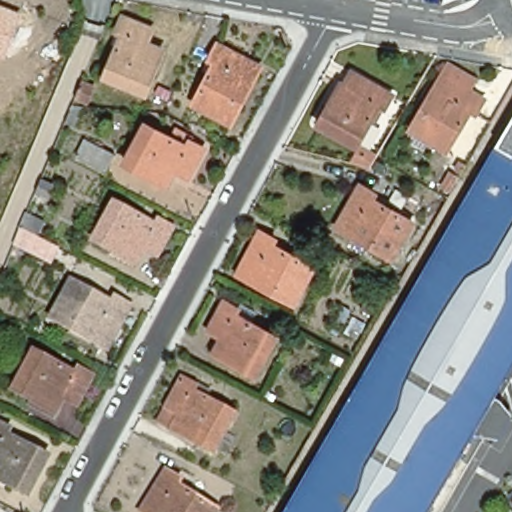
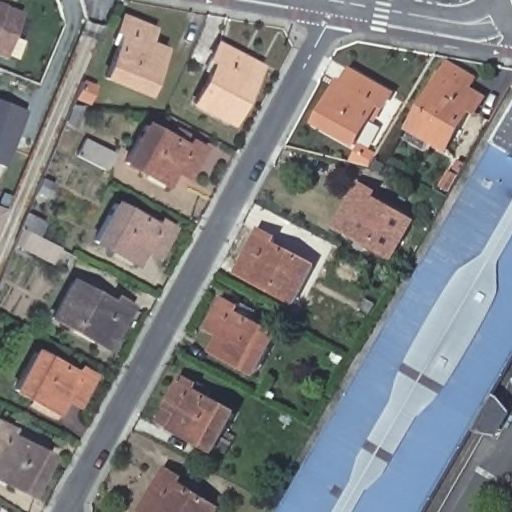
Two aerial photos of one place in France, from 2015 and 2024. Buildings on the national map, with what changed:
unchanged [(6,58),(0,55),(0,4),(22,13),(6,58)]
unchanged [(103,73),(119,37),(113,34),(124,13),(150,24),(145,39),(155,44),(161,46),(156,58),(143,90),(103,73)]
unchanged [(218,46),(258,67),(229,123),(193,103),(207,77),(215,63),(209,60),(218,46)]
unchanged [(475,80),(469,92),(483,100),(474,115),(468,111),(445,150),(411,131),(449,65),(475,80)]
unchanged [(395,94),(386,109),(380,106),(357,146),(323,126),(339,97),(345,85),(351,88),(360,75),(395,94)]
new [(0,163),(0,99),(28,111),(8,166),(0,163)]
unchanged [(80,114),(75,126),(65,121),(70,110),(80,114)]
unchanged [(151,173),(125,158),(144,120),(155,127),(159,122),(175,131),(172,136),(185,141),(188,136),(204,145),(188,173),(174,165),(169,175),(165,181),(151,173)]
unchanged [(440,487),(425,512),(284,512),(351,396),(440,243),(512,120),(512,362),(440,487)]
unchanged [(85,168),(91,156),(105,163),(99,175),(85,168)]
unchanged [(51,184),(46,194),(36,189),(40,179),(51,184)]
unchanged [(378,196),(375,203),(410,224),(390,258),(335,227),(360,186),(378,196)]
unchanged [(120,251),(94,236),(114,200),(152,221),(156,215),(170,223),(155,250),(142,244),(137,252),(134,259),(120,251)]
new [(0,208),(5,211),(0,223),(0,208)]
unchanged [(35,220),(27,234),(19,230),(25,215),(35,220)]
unchanged [(20,249),(27,234),(57,250),(50,263),(20,249)]
unchanged [(238,274),(260,234),(275,241),(272,247),(313,268),(293,304),(267,290),(254,283),(238,274)]
unchanged [(111,304),(115,297),(130,305),(105,347),(51,318),(71,282),(111,304)]
unchanged [(218,341),(218,338),(221,332),(208,324),(224,298),(239,306),(235,311),(275,333),(255,370),(229,355),(215,347),(218,341)]
unchanged [(374,305),(368,314),(359,308),(364,300),(374,305)]
unchanged [(73,368),(76,363),(90,373),(76,399),(63,391),(50,415),(39,409),(43,401),(14,385),(34,348),(73,368)]
unchanged [(158,421),(181,379),(197,387),(194,392),(234,414),(214,452),(186,437),(172,429),(158,421)]
unchanged [(0,468),(0,424),(1,423),(15,431),(13,436),(53,458),(32,494),(5,479),(0,477),(0,468)]
unchanged [(141,511),(165,470),(180,479),(177,486),(216,510),(215,512),(143,512),(141,511)]

